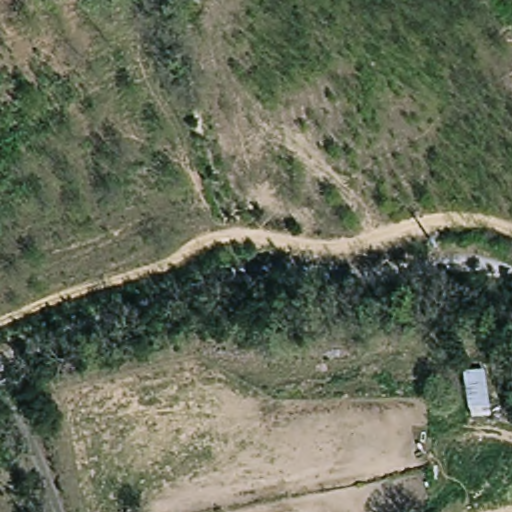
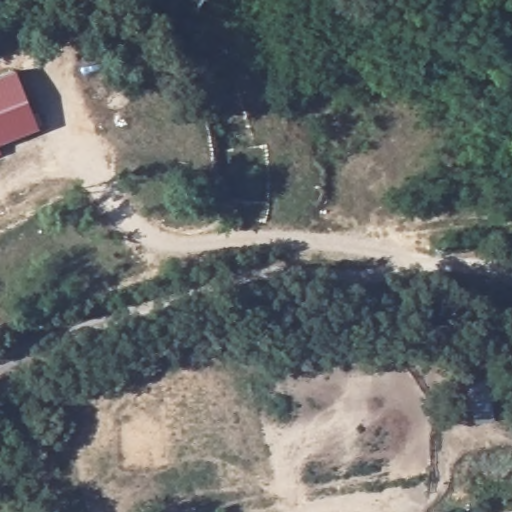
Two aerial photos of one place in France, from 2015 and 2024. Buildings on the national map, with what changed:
new [(16,71),(38,129),(0,144),(0,78),(16,71)]
unchanged [(472,377),(494,376),(499,421),(478,421),(472,377)]

